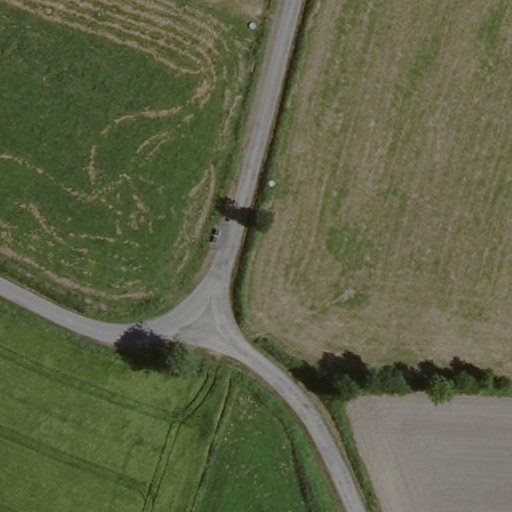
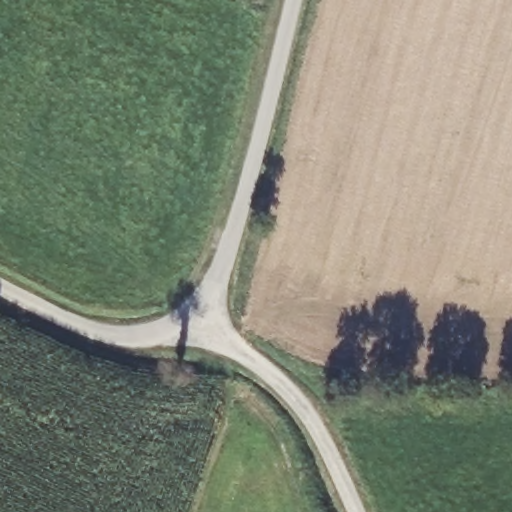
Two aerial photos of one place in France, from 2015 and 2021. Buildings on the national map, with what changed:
[]

